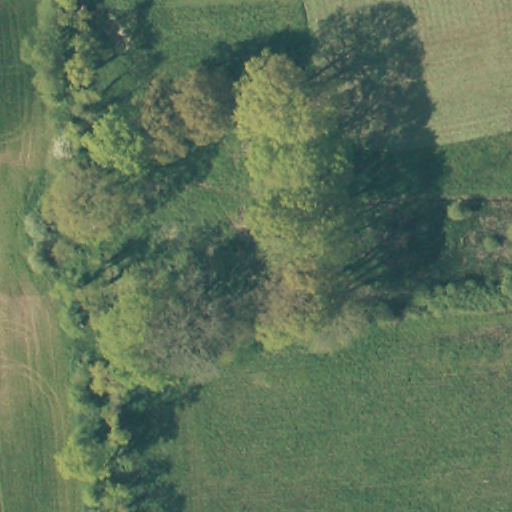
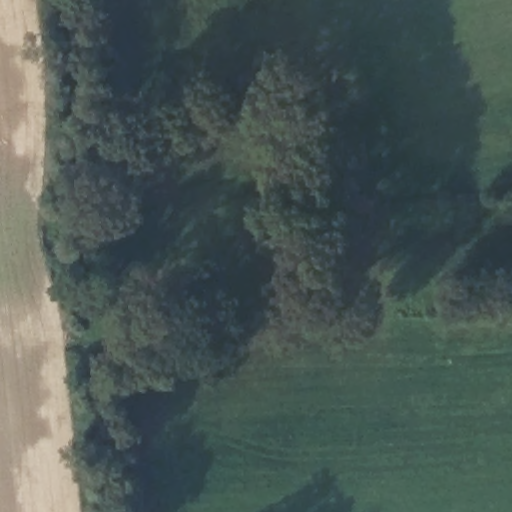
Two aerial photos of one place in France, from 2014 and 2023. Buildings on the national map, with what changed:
[]

